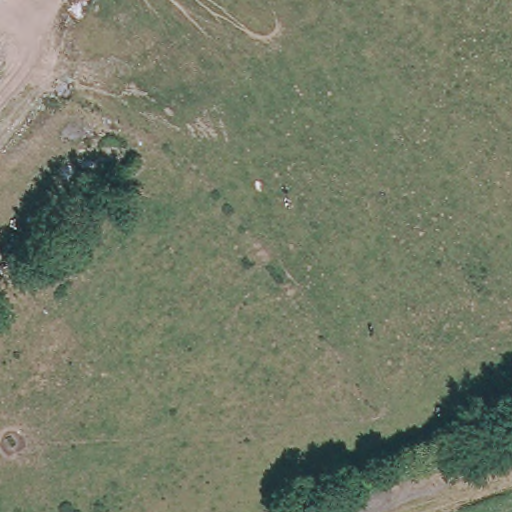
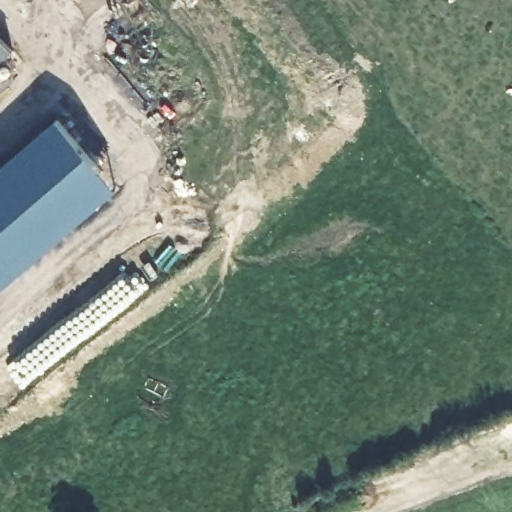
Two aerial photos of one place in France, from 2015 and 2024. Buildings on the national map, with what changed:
new [(0,66),(0,37),(15,51),(0,66)]
new [(117,189),(0,290),(0,169),(57,119),(117,189)]

